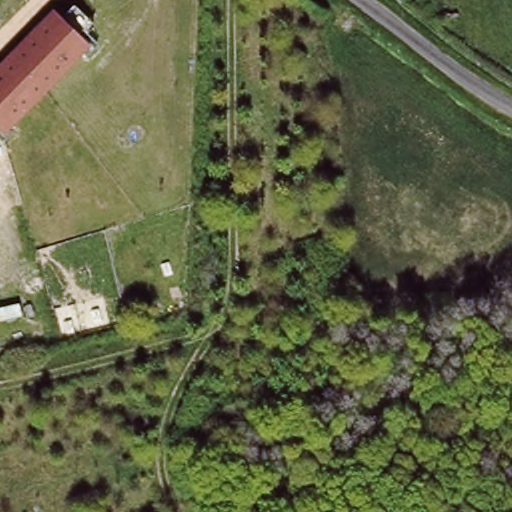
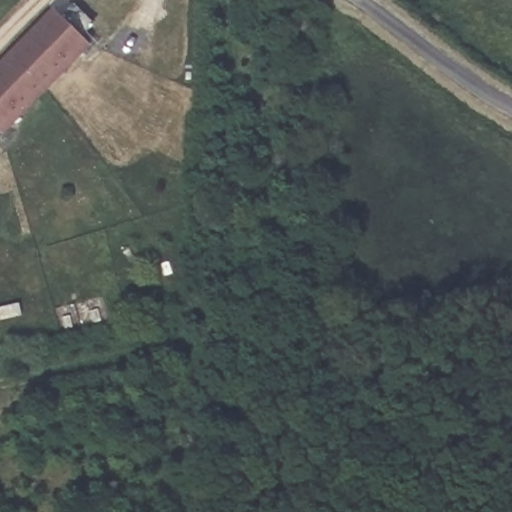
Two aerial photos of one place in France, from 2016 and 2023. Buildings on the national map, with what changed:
unchanged [(0,131),(0,59),(50,5),(63,17),(76,3),(96,21),(83,35),(91,42),(3,134),(0,131)]

